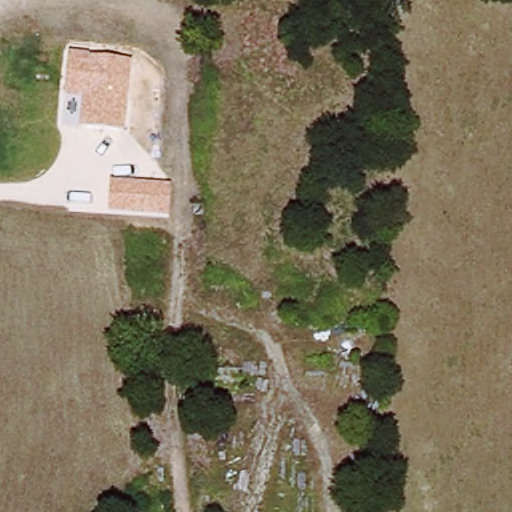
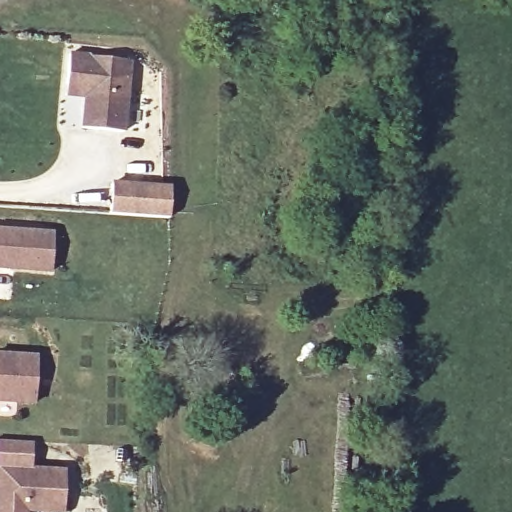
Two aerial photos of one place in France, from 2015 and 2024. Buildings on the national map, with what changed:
unchanged [(81,127),(83,97),(66,96),(69,53),(133,60),(125,132),(81,127)]
unchanged [(111,181),(171,186),(168,219),(108,212),(111,181)]
new [(0,270),(0,227),(53,230),(52,272),(0,270)]
new [(0,404),(0,351),(36,353),(35,406),(0,404)]
new [(31,467),(65,469),(62,512),(0,512),(0,440),(33,442),(31,467)]

